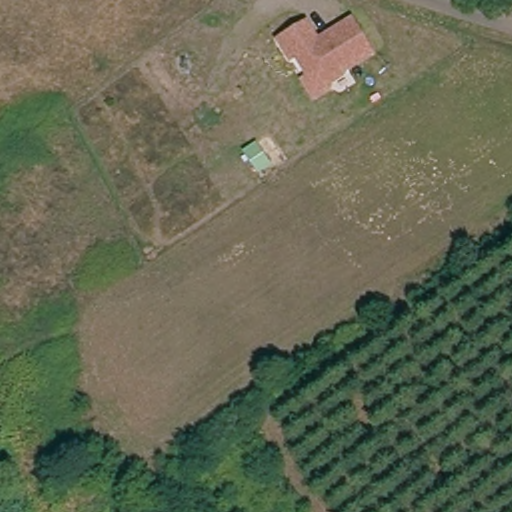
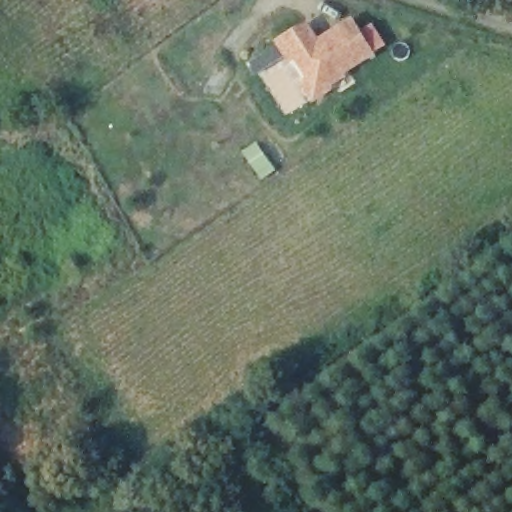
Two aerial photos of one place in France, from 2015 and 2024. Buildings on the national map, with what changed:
unchanged [(301,60),(293,65),(282,46),(309,27),(321,45),(355,21),(376,54),(332,85),(336,90),(320,102),(309,85),(315,81),(301,60)]

